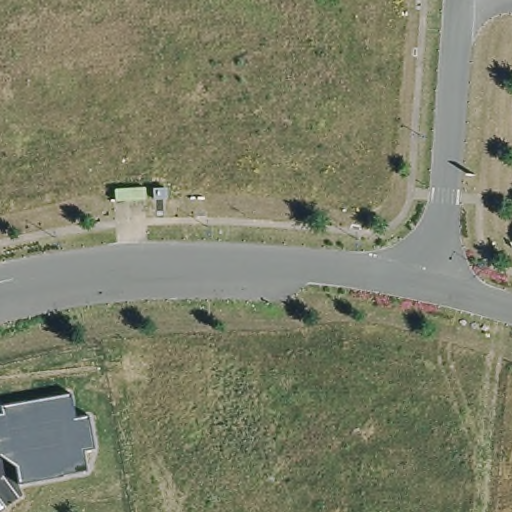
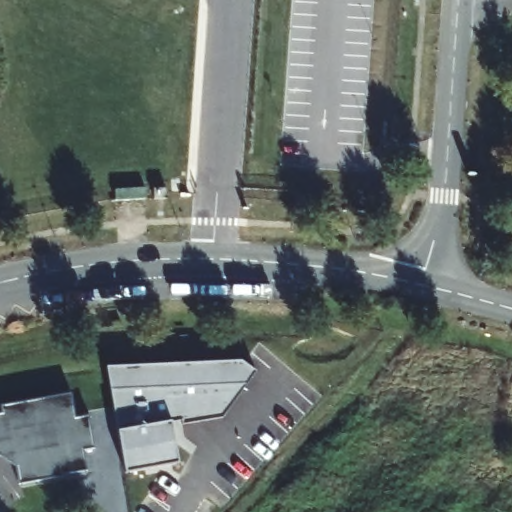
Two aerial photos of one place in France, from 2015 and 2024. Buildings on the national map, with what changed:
new [(255,370),(222,418),(182,423),(182,418),(170,421),(177,461),(127,471),(118,430),(105,366),(242,361),(255,370)]
unchanged [(0,454),(0,404),(67,397),(70,417),(85,415),(90,447),(78,449),(82,469),(17,485),(11,457),(0,454)]

